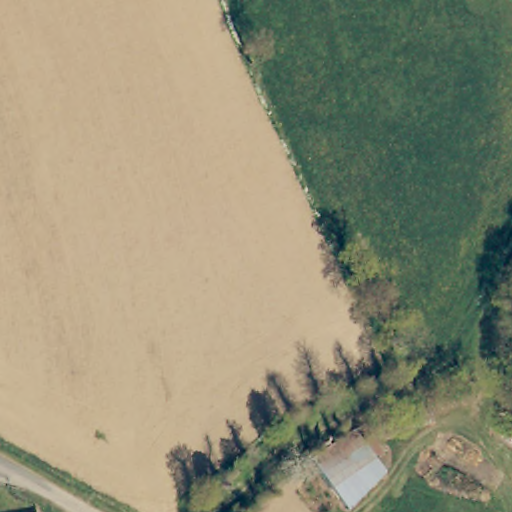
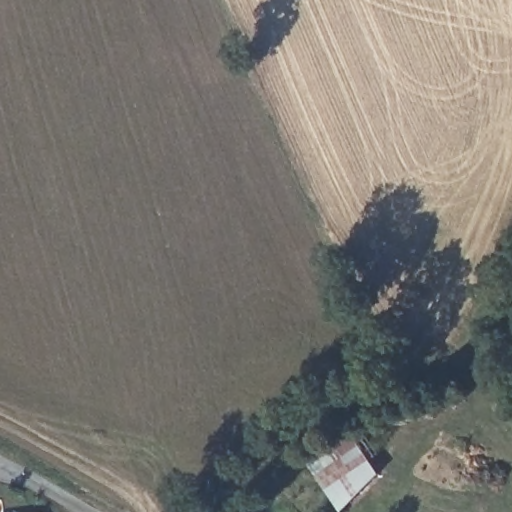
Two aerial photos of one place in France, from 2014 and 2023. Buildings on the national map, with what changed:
unchanged [(344,440),(381,475),(345,512),(308,462),(344,440)]

